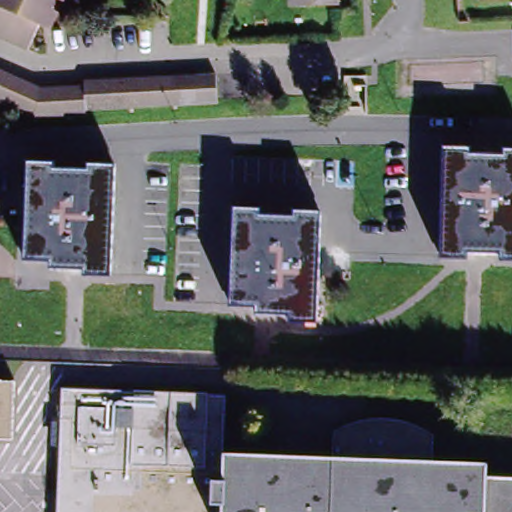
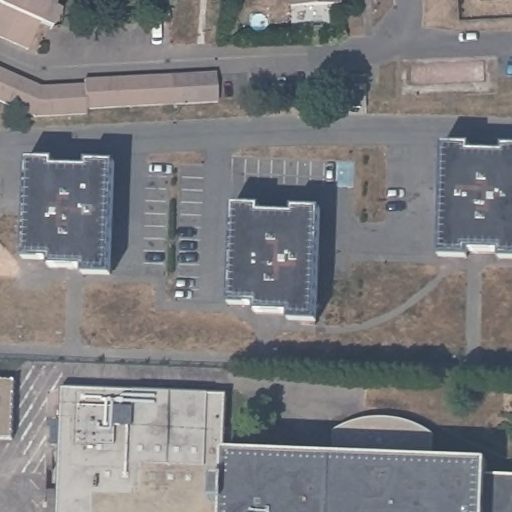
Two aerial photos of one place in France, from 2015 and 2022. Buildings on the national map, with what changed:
unchanged [(26,46),(0,35),(0,0),(51,0),(50,4),(57,8),(48,26),(37,21),(26,46)]
unchanged [(288,7),(288,0),(337,0),(337,5),(288,7)]
unchanged [(175,101),(102,105),(82,106),(83,111),(34,113),(0,99),(0,67),(39,84),(82,82),(82,76),(190,71),(214,71),(216,97),(216,99),(175,101)]
unchanged [(500,258),(500,254),(467,252),(467,258),(442,257),(446,147),(471,148),(471,152),(503,153),(503,149),(512,149),(512,259),(500,258)]
unchanged [(87,168),(87,164),(114,164),(110,275),(83,274),(83,269),(49,268),(49,260),(25,259),(28,161),(54,162),(53,168),(87,168)]
unchanged [(290,316),(290,313),(262,311),(262,302),(232,300),(236,204),(266,205),(265,210),(294,211),(294,206),(320,207),(317,317),(316,322),(300,321),(301,317),(290,316)]
unchanged [(11,436),(0,435),(0,375),(14,375),(11,436)]
unchanged [(63,512),(67,427),(68,387),(232,396),(230,453),(337,457),(338,450),(340,429),(358,421),(373,417),(385,416),(408,418),(422,423),(436,430),(440,433),(438,461),(493,464),(494,477),(512,478),(512,512),(63,512)]

